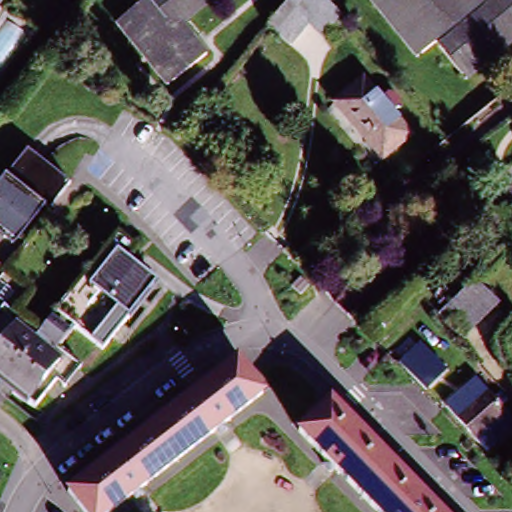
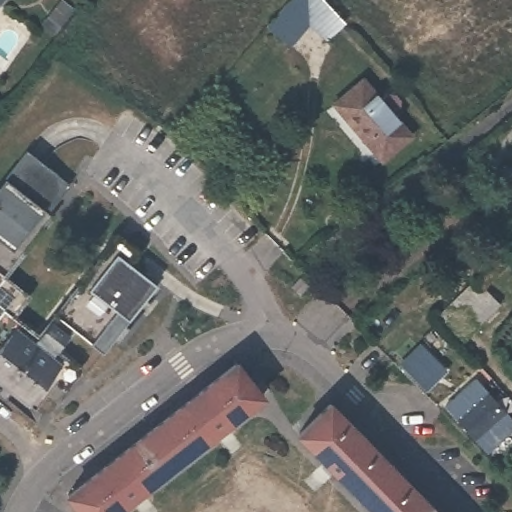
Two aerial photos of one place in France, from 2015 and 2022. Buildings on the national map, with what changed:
demolished [(181,28),(209,61),(171,92),(116,27),(144,2),(143,0),(214,0),(181,28)]
unchanged [(273,6),(278,0),(330,0),(350,22),(324,43),(305,21),(291,32),(271,8),(273,6)]
demolished [(438,48),(422,62),(370,0),(485,0),(489,4),(495,0),(512,0),(512,47),(469,83),(438,48)]
unchanged [(369,157),(324,102),(354,78),(397,134),(369,157)]
unchanged [(41,214),(0,267),(0,187),(25,154),(68,186),(45,214),(44,218),(41,214)]
unchanged [(51,218),(3,281),(26,299),(11,320),(35,337),(115,237),(134,251),(126,262),(116,252),(61,321),(72,329),(55,352),(78,370),(64,389),(55,382),(64,371),(0,322),(0,267),(41,214),(44,218),(45,214),(51,218)]
unchanged [(155,284),(101,352),(72,329),(61,321),(116,252),(126,262),(155,284)]
unchanged [(461,335),(441,313),(477,280),(496,302),(461,335)]
unchanged [(64,371),(55,382),(35,410),(0,383),(0,322),(64,371)]
unchanged [(422,389),(399,363),(418,345),(442,370),(422,389)]
unchanged [(87,512),(69,489),(238,357),(264,390),(108,512),(87,512)]
unchanged [(478,445),(441,405),(471,380),(506,422),(478,445)]
unchanged [(331,400),(440,512),(376,512),(299,433),(331,400)]

